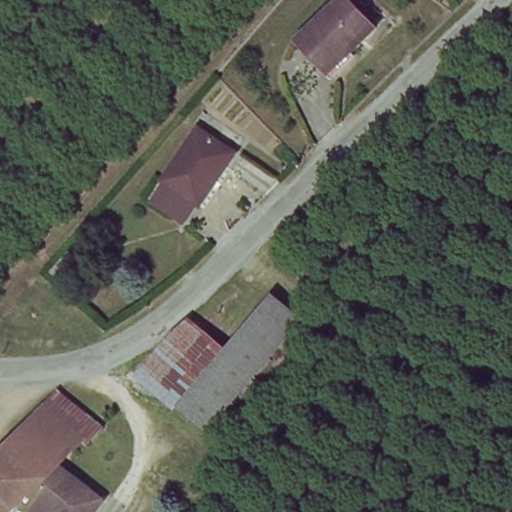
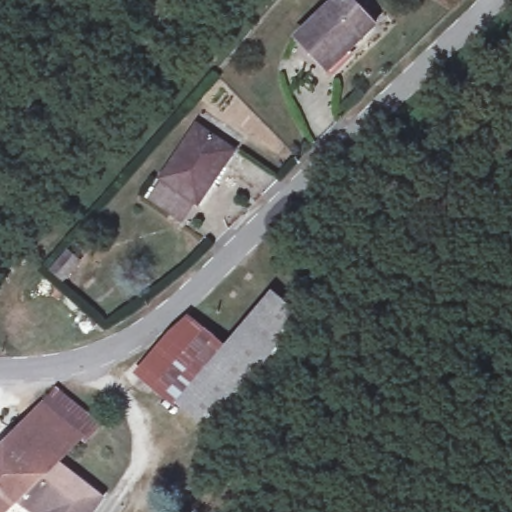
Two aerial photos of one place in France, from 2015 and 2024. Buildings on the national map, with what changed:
unchanged [(375,32),(331,75),(296,44),(342,1),(375,32)]
unchanged [(148,204),(161,184),(196,131),(233,155),(197,209),(185,227),(148,204)]
unchanged [(45,262),(59,247),(69,257),(58,272),(45,262)]
unchanged [(270,301),(298,325),(209,425),(182,404),(223,356),(270,301)]
unchanged [(182,404),(141,369),(178,323),(223,356),(182,404)]
unchanged [(48,422),(65,404),(106,439),(90,458),(76,447),(48,422)]
unchanged [(4,512),(0,512),(0,456),(21,436),(48,422),(76,447),(59,467),(65,473),(101,502),(93,512),(31,512),(18,500),(4,512)]

